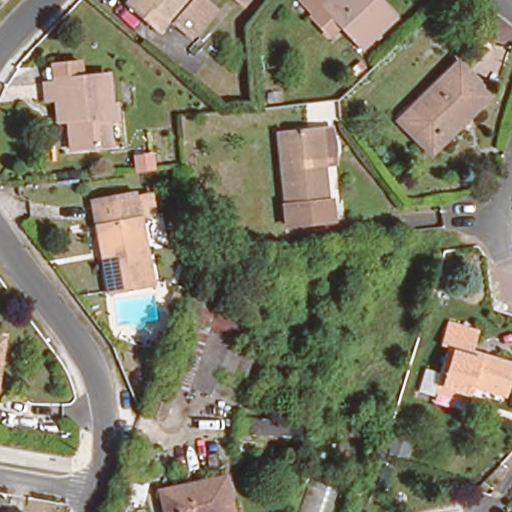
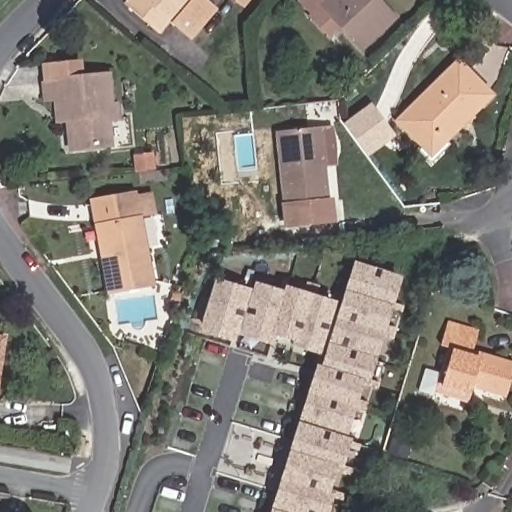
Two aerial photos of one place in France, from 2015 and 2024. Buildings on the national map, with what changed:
unchanged [(126,9),(134,0),(199,0),(197,2),(214,16),(191,43),(173,29),(168,24),(159,36),(147,26),(126,9)]
unchanged [(241,14),(224,0),(253,0),(241,14)]
unchanged [(330,23),(331,22),(319,8),(328,0),(388,0),(408,21),(377,52),(357,30),(346,40),(330,23)]
unchanged [(115,110),(122,109),(122,123),(113,124),(115,149),(76,152),(72,123),(64,124),(62,103),(51,104),(49,87),(60,86),(59,70),(85,68),(86,84),(112,82),(115,110)]
unchanged [(422,151),(400,128),(458,72),(488,103),(444,149),(432,161),(422,151)]
new [(343,124),(372,103),(396,136),(367,157),(355,140),(343,124)]
unchanged [(284,222),(277,128),(320,125),(326,125),(331,200),(328,200),(330,218),(284,222)]
unchanged [(97,232),(92,206),(136,199),(140,223),(152,290),(109,297),(97,232)]
new [(321,366),(323,358),(328,342),(333,327),(336,318),(341,304),(345,290),(348,279),(354,261),(403,276),(397,294),(395,303),(404,306),(402,312),(392,309),(390,320),(387,325),(397,328),(393,339),(384,336),(382,342),(377,357),(372,373),(371,380),(380,383),(378,389),(368,386),(369,384),(364,383),(361,394),(359,400),(368,403),(365,414),(356,411),(353,419),(347,437),(352,438),(351,442),(362,445),(360,451),(349,448),(347,457),(343,466),(353,469),(351,475),(342,472),(342,470),(337,468),(333,480),(331,490),(345,494),(342,501),(333,498),(331,506),(329,512),(270,512),(271,508),(277,489),(280,480),(285,465),(290,450),(289,450),(292,440),(298,422),(304,404),(307,393),(312,379),(317,365),(321,366)]
new [(283,339),(276,336),(273,345),(256,340),(238,335),(236,343),(217,337),(199,331),(214,278),(232,284),(252,289),(254,281),(272,287),(279,289),(282,279),(290,282),(289,286),(298,289),(303,291),(307,281),(320,286),(317,295),(322,297),(337,301),(320,355),(305,351),(292,346),(293,342),(283,339)]
unchanged [(441,391),(438,398),(421,393),(427,372),(445,377),(453,347),(446,345),(451,326),(482,335),(476,354),(512,366),(512,391),(511,394),(478,384),(476,393),(473,400),(441,391)]
unchanged [(0,347),(4,348),(0,370),(0,347)]
demolished [(237,433),(237,418),(301,422),(300,436),(237,433)]
unchanged [(408,449),(403,464),(385,458),(388,444),(408,449)]
demolished [(225,477),(231,512),(163,512),(159,491),(225,477)]

